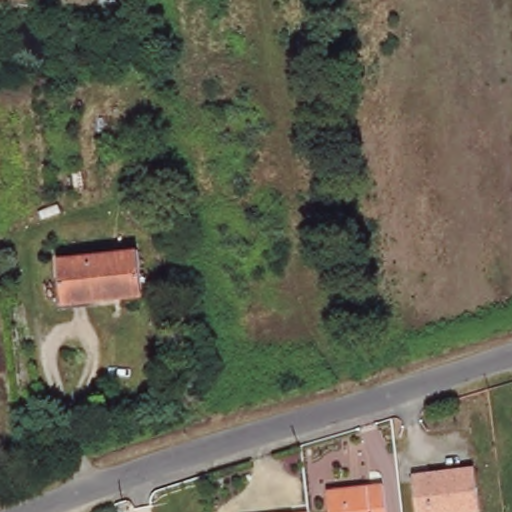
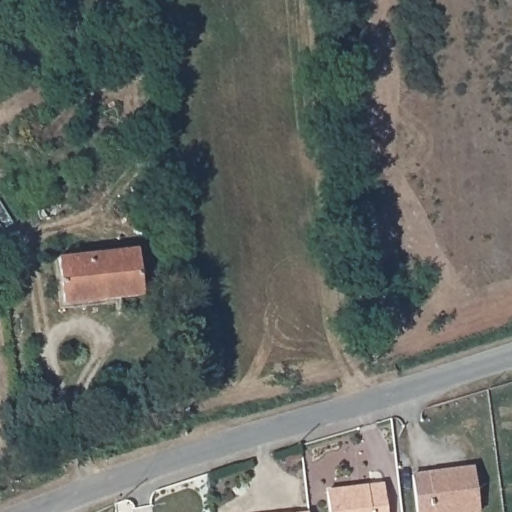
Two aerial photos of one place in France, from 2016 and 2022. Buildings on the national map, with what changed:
unchanged [(135,251),(140,298),(101,303),(100,300),(60,304),(55,260),(135,251)]
unchanged [(476,472),(479,512),(413,512),(411,476),(476,472)]
unchanged [(378,484),(382,512),(328,512),(325,490),(378,484)]

